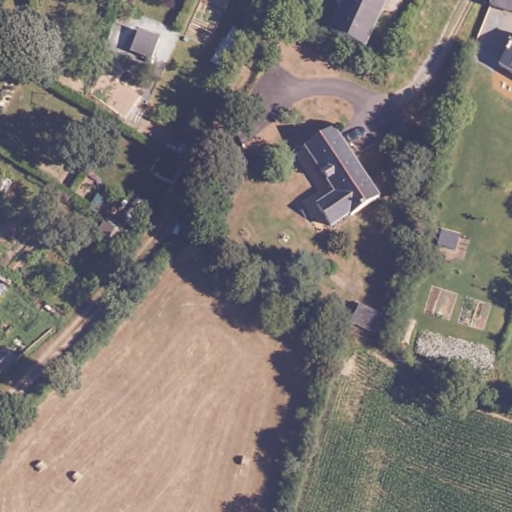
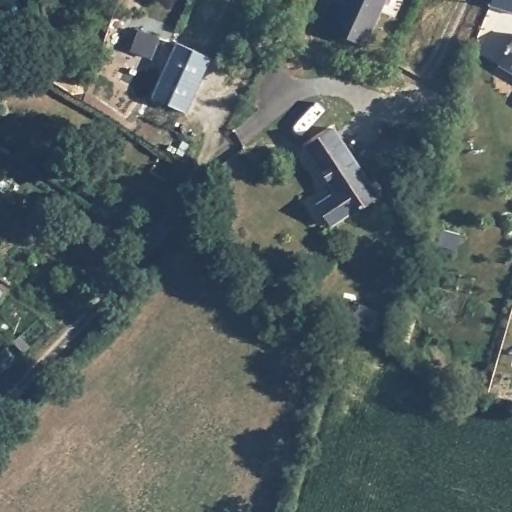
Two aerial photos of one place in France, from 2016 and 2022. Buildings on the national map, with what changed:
unchanged [(344,0),(386,0),(365,47),(330,31),(344,0)]
unchanged [(485,0),(512,0),(512,9),(485,1),(485,0)]
unchanged [(231,34),(242,41),(222,70),(212,63),(231,34)]
unchanged [(512,42),(512,72),(499,65),(512,42)]
new [(186,113),(153,96),(177,43),(210,57),(186,113)]
unchanged [(339,128),(384,197),(356,216),(355,213),(336,226),(322,205),(341,193),(310,146),(339,128)]
unchanged [(456,250),(438,245),(442,230),(460,236),(456,250)]
unchanged [(0,305),(0,287),(8,292),(0,305)]
unchanged [(389,320),(382,335),(358,323),(364,309),(389,320)]
unchanged [(7,348),(16,360),(0,373),(0,353),(7,348)]

